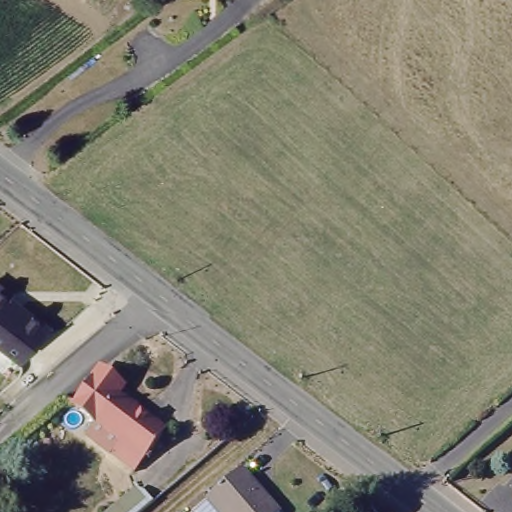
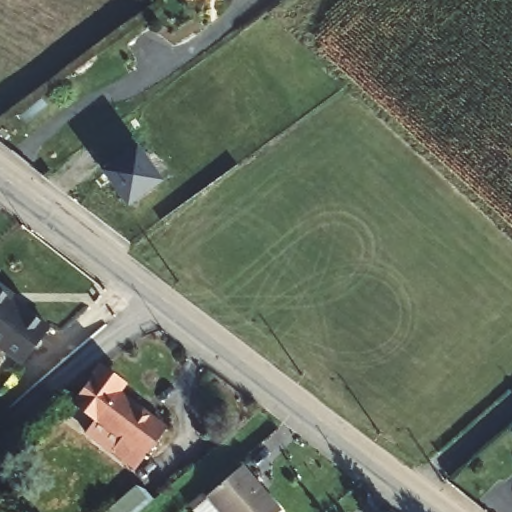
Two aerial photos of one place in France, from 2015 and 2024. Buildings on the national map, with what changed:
new [(134,145),(160,183),(126,207),(100,172),(134,145)]
unchanged [(18,361),(0,347),(0,286),(10,294),(6,299),(18,308),(19,306),(45,325),(18,361)]
unchanged [(99,423),(78,405),(103,372),(126,391),(122,397),(171,435),(138,477),(113,457),(89,437),(99,423)]
unchanged [(274,512),(222,512),(204,491),(241,461),(279,508),(274,512)]
unchanged [(133,512),(109,512),(137,488),(147,500),(133,512)]

